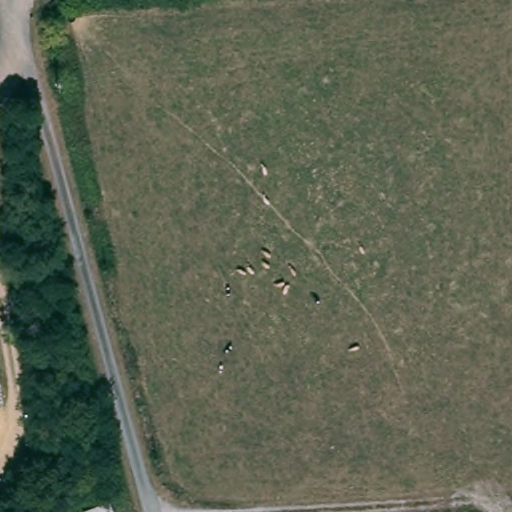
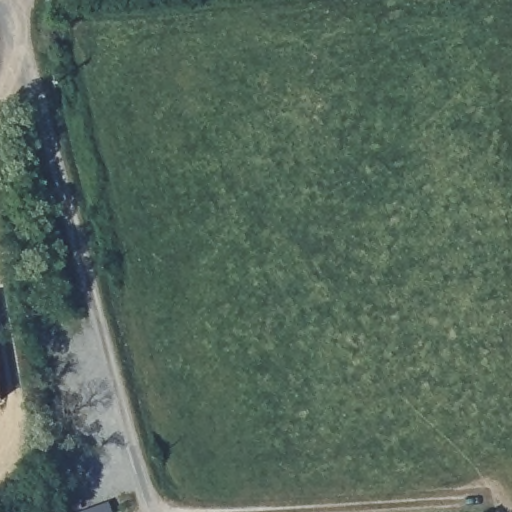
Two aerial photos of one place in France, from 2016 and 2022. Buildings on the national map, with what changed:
unchanged [(2,396),(0,396),(0,379),(2,396)]

